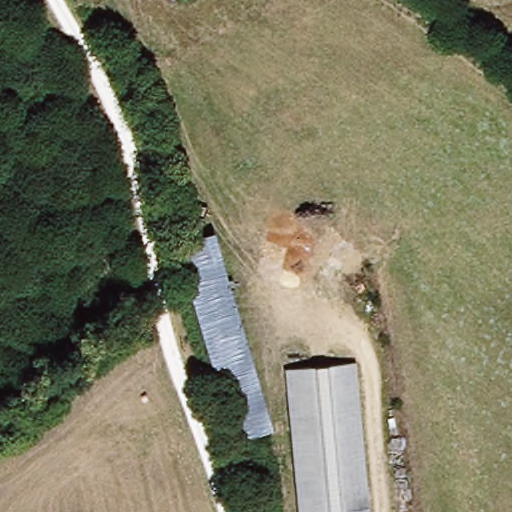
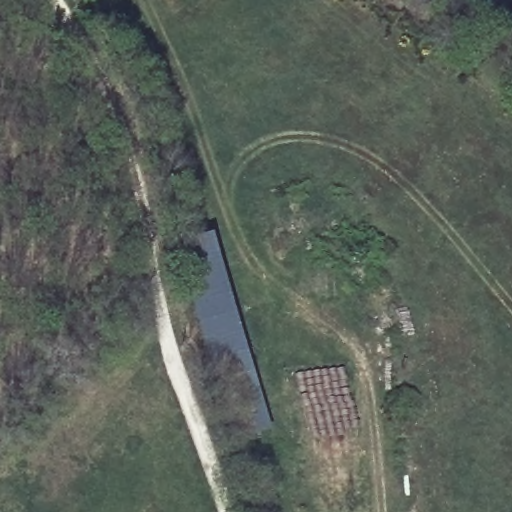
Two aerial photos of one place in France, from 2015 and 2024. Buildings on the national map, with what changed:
unchanged [(219,388),(218,387),(207,337),(200,315),(198,308),(179,242),(182,237),(183,235),(184,233),(183,230),(193,232),(204,230),(240,334),(270,419),(237,430),(219,388)]
demolished [(342,359),(366,512),(295,512),(274,369),(342,359)]

